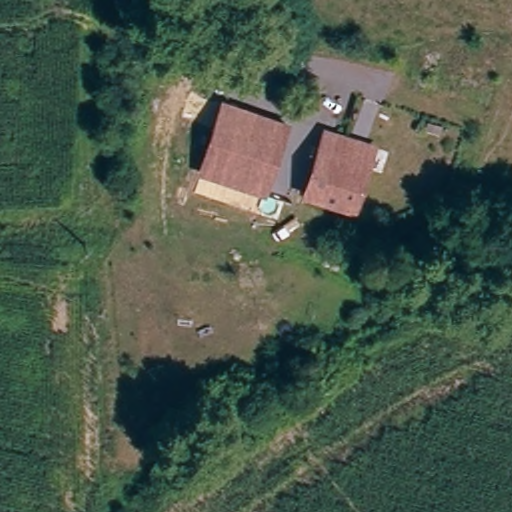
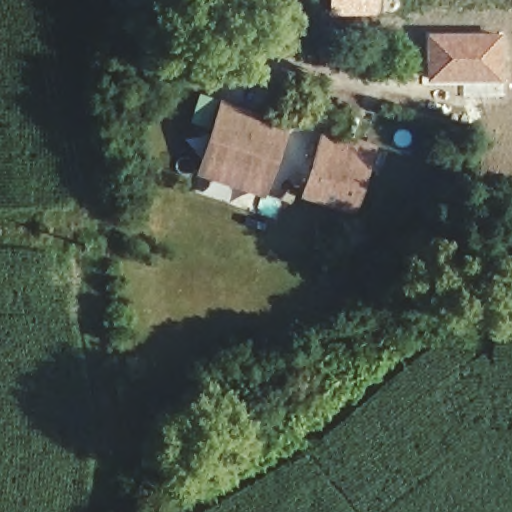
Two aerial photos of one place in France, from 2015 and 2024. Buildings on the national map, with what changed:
new [(381,0),(382,15),(329,16),(329,0),(381,0)]
new [(506,31),(506,86),(426,81),(425,32),(506,31)]
unchanged [(271,201),(260,198),(254,216),(202,200),(222,132),(215,127),(221,113),(228,116),(292,135),(271,201)]
unchanged [(304,204),(328,133),(372,145),(350,216),(304,204)]

